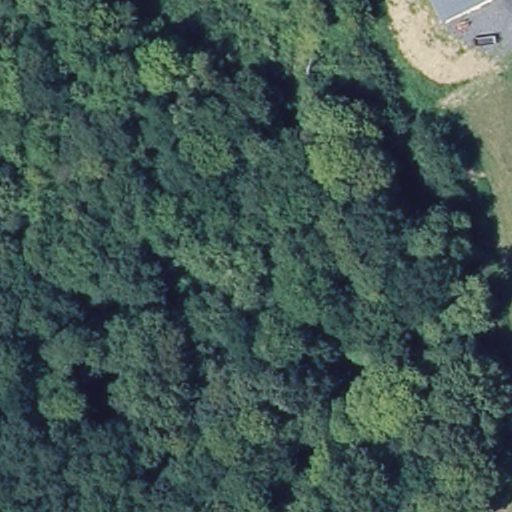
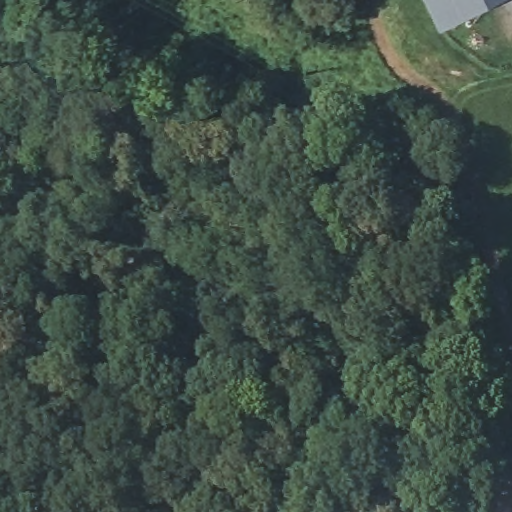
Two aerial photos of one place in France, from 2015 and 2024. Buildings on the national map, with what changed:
unchanged [(425,0),(493,0),(438,28),(425,0)]

